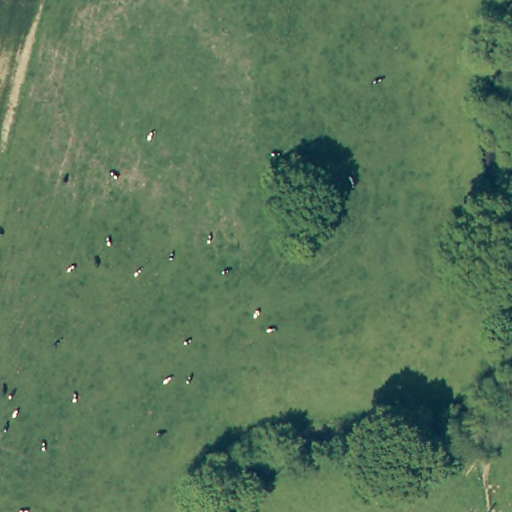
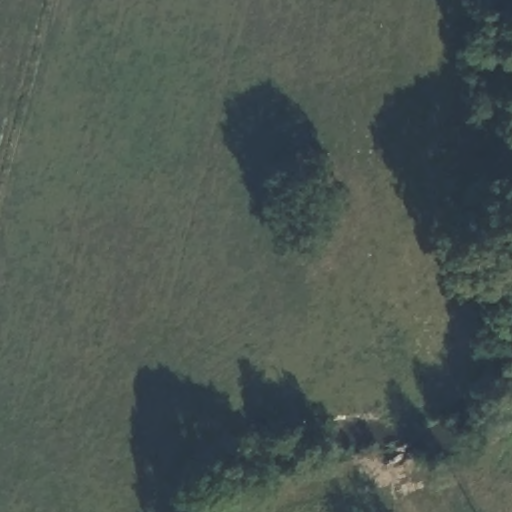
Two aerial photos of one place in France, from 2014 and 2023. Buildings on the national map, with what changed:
[]

